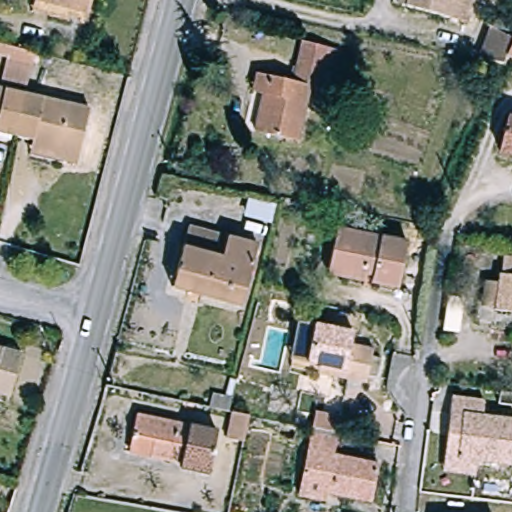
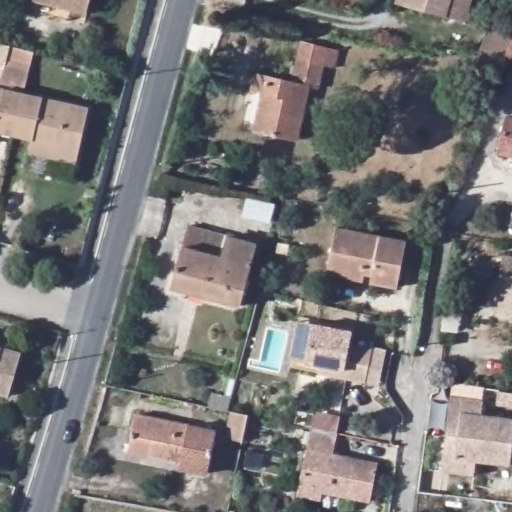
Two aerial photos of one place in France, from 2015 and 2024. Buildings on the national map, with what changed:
unchanged [(45,0),(91,0),(88,11),(45,0)]
unchanged [(471,0),(465,21),(406,4),(397,1),(397,0),(471,0)]
unchanged [(507,51),(504,57),(480,54),(495,23),(512,31),(512,54),(507,51)]
unchanged [(0,130),(0,88),(1,88),(8,63),(0,61),(0,42),(35,52),(31,68),(25,94),(16,134),(0,130)]
unchanged [(250,96),(255,77),(290,85),(300,44),(336,53),(326,93),(311,90),(296,145),(253,134),(262,100),(250,96)]
unchanged [(79,157),(33,145),(35,139),(16,134),(25,94),(91,111),(79,157)]
unchanged [(512,122),(512,163),(498,159),(509,121),(512,122)]
unchanged [(331,267),(338,229),(407,245),(398,292),(371,286),(329,276),(331,267)]
unchanged [(176,275),(186,231),(257,249),(241,310),(206,300),(171,290),(176,275)]
unchanged [(512,269),(512,272),(510,286),(512,286),(512,322),(477,317),(484,264),(512,269)]
unchanged [(351,347),(373,352),(366,388),(321,377),(324,368),(307,364),(293,361),(301,323),(315,325),(354,334),(351,347)]
unchanged [(14,397),(0,394),(0,348),(26,355),(14,397)]
unchanged [(210,393),(231,397),(227,410),(208,405),(210,393)]
unchanged [(453,397),(485,401),(484,415),(512,419),(512,464),(480,460),(459,458),(464,414),(451,413),(453,397)]
unchanged [(249,414),(243,440),(226,437),(231,410),(249,414)]
unchanged [(464,414),(459,458),(480,460),(478,475),(445,471),(451,413),(464,414)]
unchanged [(150,455),(153,441),(131,437),(136,414),(218,431),(210,472),(182,467),(183,462),(150,455)]
unchanged [(381,468),(375,505),(304,493),(316,431),(341,436),(337,460),(381,468)]

